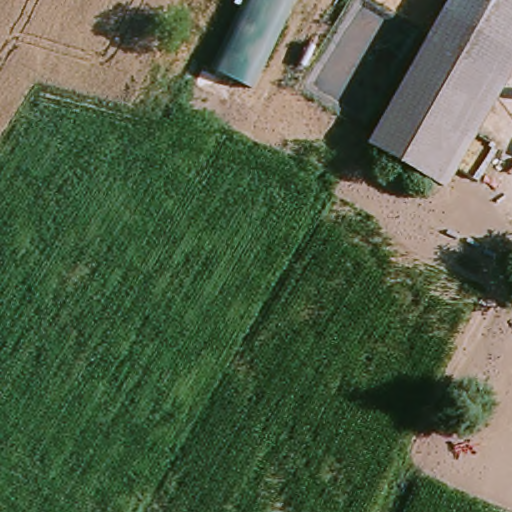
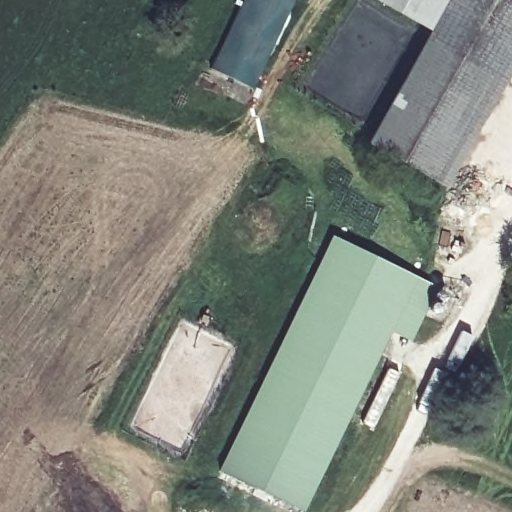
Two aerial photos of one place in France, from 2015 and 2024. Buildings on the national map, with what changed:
unchanged [(294,0),(255,85),(213,67),(244,0),(294,0)]
unchanged [(450,0),(512,0),(512,74),(448,188),(368,142),(431,32),(450,0)]
new [(375,0),(450,0),(431,32),(375,0)]
new [(329,238),(414,279),(304,512),(299,512),(218,473),(329,238)]

